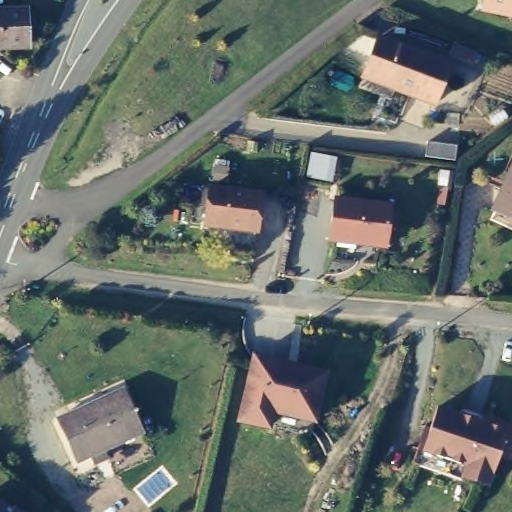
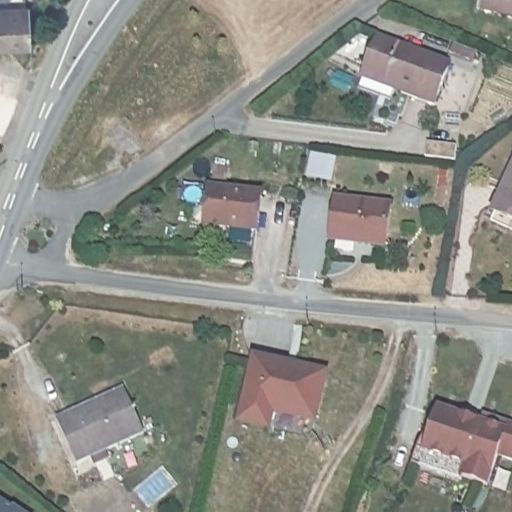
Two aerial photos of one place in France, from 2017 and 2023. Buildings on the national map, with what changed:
unchanged [(484,0),(512,0),(512,15),(482,11),(483,5),(484,0)]
unchanged [(20,47),(0,46),(0,11),(22,11),(20,47)]
unchanged [(364,66),(377,35),(448,64),(432,103),(390,86),(361,73),(364,66)]
unchanged [(491,209),(501,185),(512,162),(512,218),(491,209)]
unchanged [(202,194),(255,200),(250,237),(197,231),(202,194)]
unchanged [(335,209),(390,213),(387,253),(331,250),(335,209)]
unchanged [(324,376),(308,437),(263,426),(237,420),(252,359),(324,376)]
unchanged [(122,390),(140,436),(76,465),(56,420),(122,390)]
unchanged [(485,428),(488,421),(512,429),(512,465),(500,459),(488,488),(463,481),(467,469),(425,455),(440,411),(485,428)]
unchanged [(153,479),(164,488),(148,505),(138,496),(153,479)]
unchanged [(0,497),(24,512),(0,512),(0,497)]

